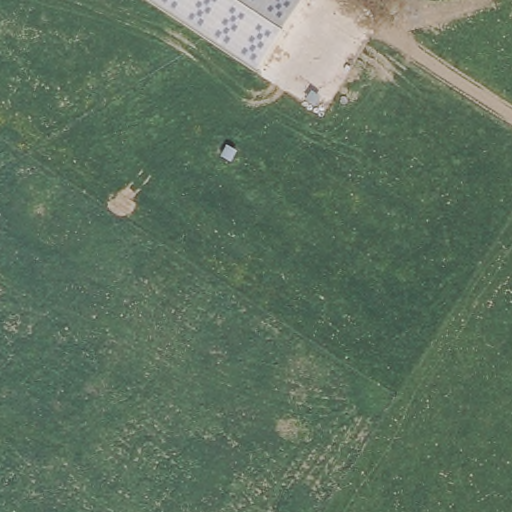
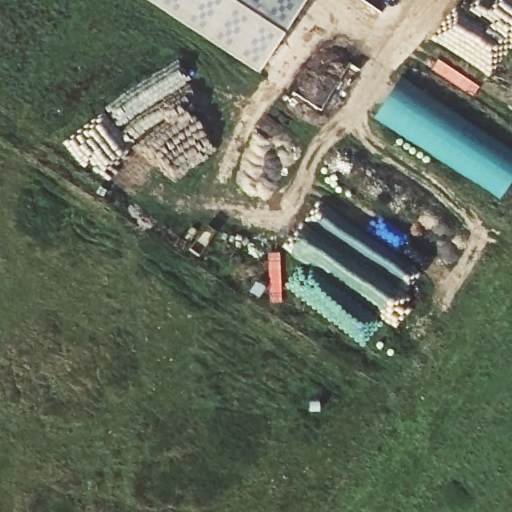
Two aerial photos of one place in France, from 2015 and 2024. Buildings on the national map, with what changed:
unchanged [(258,71),(151,0),(305,0),(258,71)]
new [(373,119),(400,78),(512,151),(512,181),(498,201),(373,119)]

